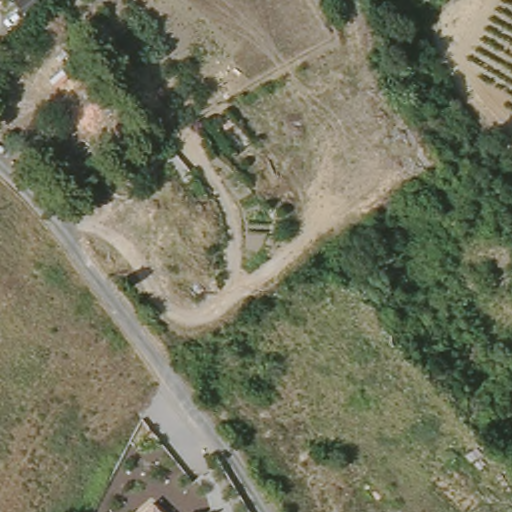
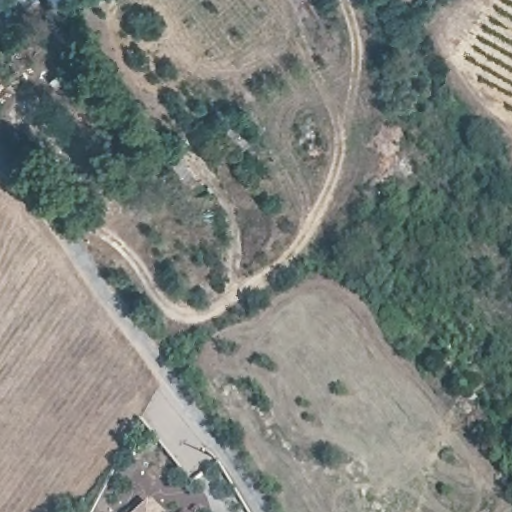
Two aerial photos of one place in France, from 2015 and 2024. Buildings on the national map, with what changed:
unchanged [(168,512),(131,512),(151,493),(168,512)]

